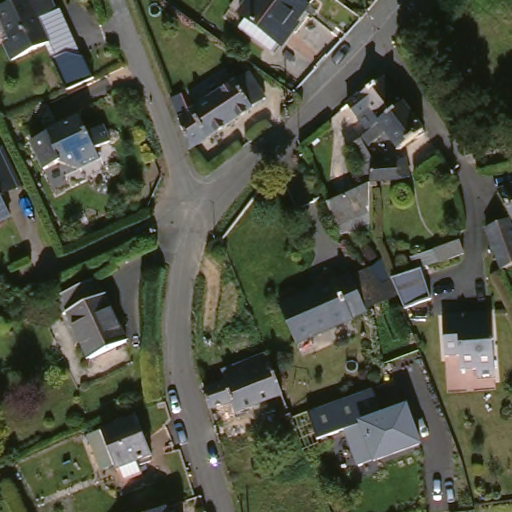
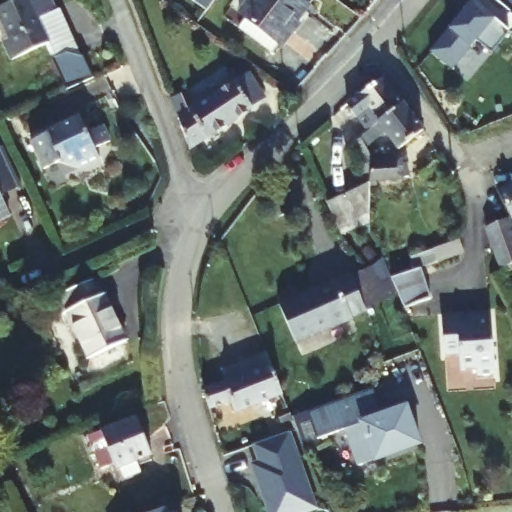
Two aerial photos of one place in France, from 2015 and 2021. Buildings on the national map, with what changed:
unchanged [(64,11),(41,21),(52,43),(17,59),(7,39),(14,35),(1,10),(23,0),(59,0),(64,11)]
unchanged [(263,0),(317,0),(322,4),(294,39),(291,36),(278,52),(247,29),(258,14),(255,10),(263,0)]
new [(512,23),(512,29),(498,47),(482,34),(458,63),(436,45),(473,0),(485,0),(512,23)]
unchanged [(72,39),(89,43),(99,64),(72,76),(57,46),(72,39)]
unchanged [(257,70),(276,95),(201,149),(187,119),(257,70)]
unchanged [(392,70),(411,93),(387,112),(374,122),(356,99),(392,70)]
unchanged [(435,120),(409,140),(387,112),(411,93),(435,120)]
unchanged [(85,119),(91,132),(104,127),(111,144),(99,150),(104,161),(84,171),(62,165),(46,171),(33,144),(51,136),(49,132),(85,119)]
unchanged [(8,198),(14,212),(0,219),(0,147),(7,145),(22,182),(26,190),(8,198)]
unchanged [(416,155),(417,180),(377,184),(377,224),(343,236),(332,200),(376,180),(373,160),(416,155)]
unchanged [(512,200),(503,186),(512,183),(512,200)]
unchanged [(488,227),(512,216),(512,264),(506,266),(488,227)]
unchanged [(438,242),(471,237),(472,251),(442,256),(440,256),(427,258),(420,260),(417,245),(438,242)]
unchanged [(342,275),(345,281),(377,265),(382,278),(392,303),(302,345),(286,300),(342,275)]
unchanged [(421,265),(430,295),(400,310),(392,303),(382,278),(421,265)]
unchanged [(90,281),(99,297),(104,293),(128,341),(93,360),(69,312),(63,315),(56,300),(90,281)]
unchanged [(500,313),(499,375),(482,375),(482,370),(464,370),(463,355),(449,355),(450,313),(500,313)]
unchanged [(270,353),(276,367),(286,395),(240,411),(236,399),(212,408),(206,389),(228,380),(225,370),(270,353)]
unchanged [(375,390),(383,410),(407,403),(422,446),(358,466),(345,428),(317,437),(307,411),(375,390)]
unchanged [(152,418),(167,452),(132,468),(129,463),(113,469),(102,439),(152,418)]
new [(261,435),(295,423),(323,498),(283,512),(280,512),(259,456),(267,453),(261,435)]
unchanged [(178,512),(164,512),(175,507),(178,512)]
unchanged [(186,512),(183,512),(186,511),(186,512)]

